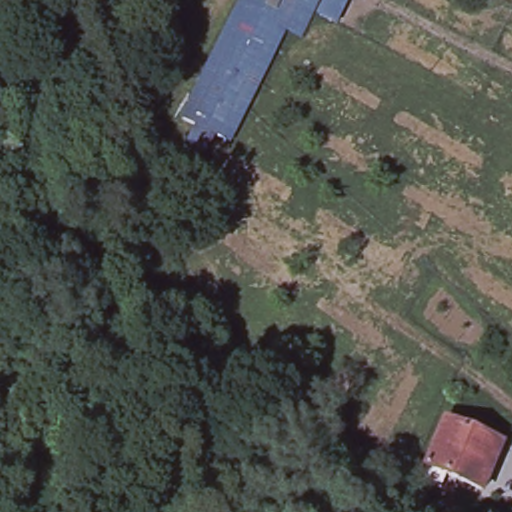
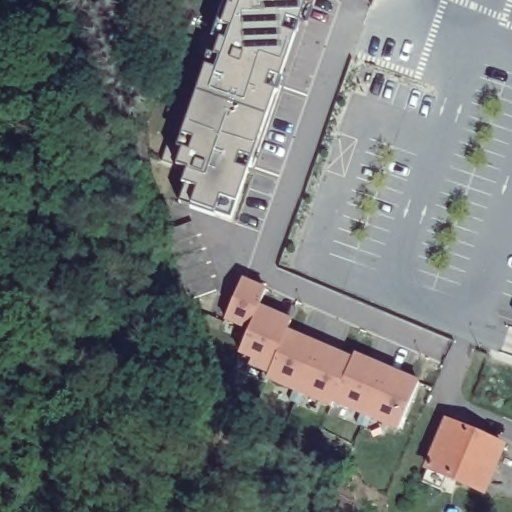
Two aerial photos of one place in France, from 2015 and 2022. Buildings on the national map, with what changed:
new [(313,6),(308,25),(300,22),(295,35),(280,79),(283,80),(278,94),(240,202),(233,225),(173,205),(179,186),(175,185),(180,170),(170,167),(177,150),(172,149),(200,67),(197,65),(202,51),(214,55),(219,39),(212,37),(225,0),(316,0),(313,6)]
demolished [(292,30),(235,142),(187,118),(246,0),(306,0),(292,30)]
demolished [(307,37),(292,30),(306,0),(325,0),(307,37)]
demolished [(343,23),(323,14),(330,0),(355,0),(343,23)]
new [(217,290),(189,300),(165,230),(192,221),(217,290)]
new [(266,287),(260,304),(292,317),(288,327),(352,355),(354,352),(421,380),(399,431),(333,402),(330,407),(266,382),(271,368),(238,354),(247,331),(223,320),(242,276),(266,287)]
unchanged [(502,445),(483,490),(427,466),(447,421),(502,445)]

